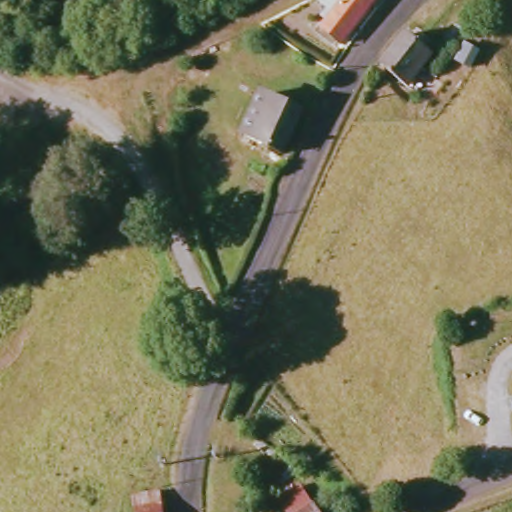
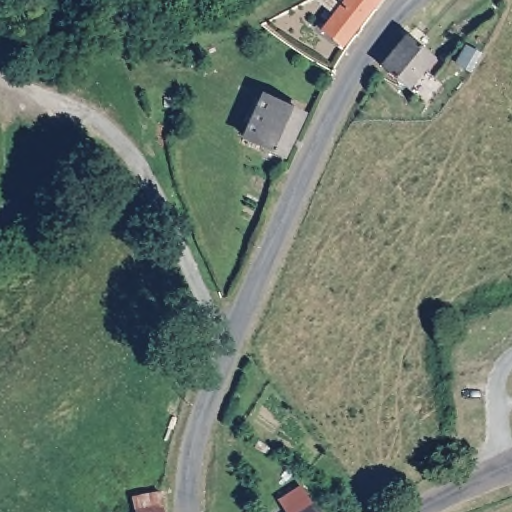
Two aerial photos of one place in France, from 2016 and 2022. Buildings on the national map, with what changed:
unchanged [(317,34),(323,26),(315,21),(321,13),(307,2),(312,0),(375,0),(336,49),(317,34)]
unchanged [(437,52),(412,82),(386,60),(411,29),(437,52)]
unchanged [(262,94),(302,113),(283,155),(244,136),(262,94)]
unchanged [(295,490),(308,510),(309,512),(278,512),(273,504),(295,490)]
unchanged [(159,492),(162,512),(134,512),(132,497),(159,492)]

